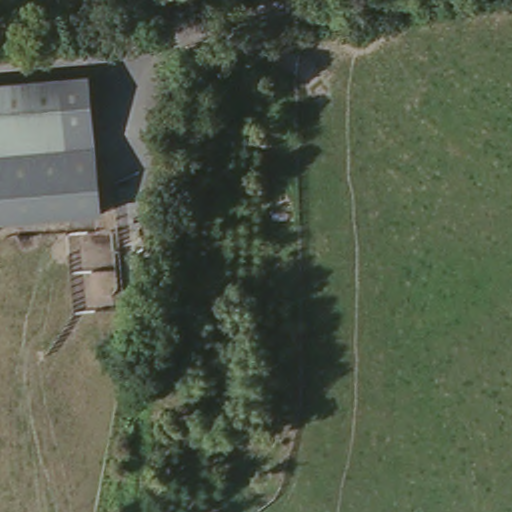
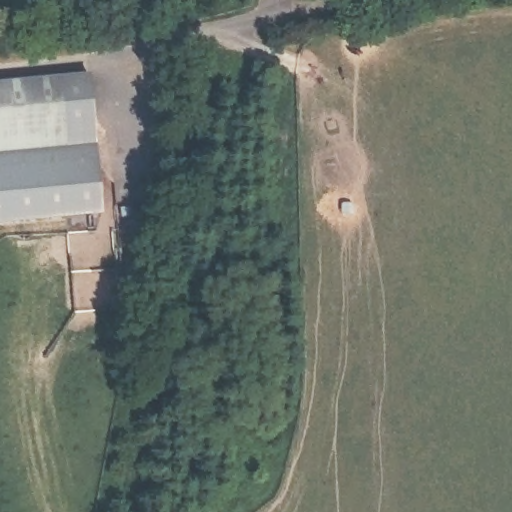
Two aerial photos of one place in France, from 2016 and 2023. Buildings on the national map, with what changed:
unchanged [(102,215),(0,224),(0,79),(89,72),(102,215)]

